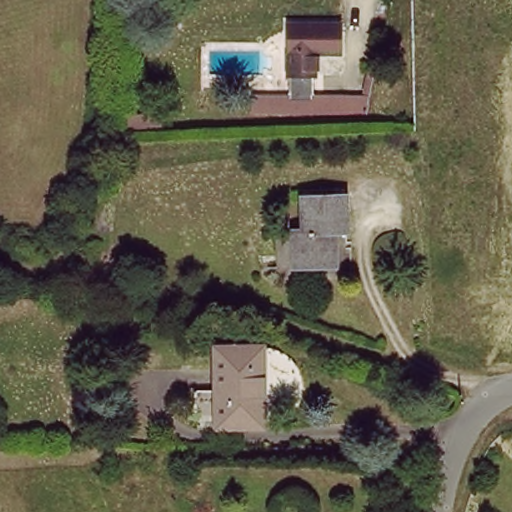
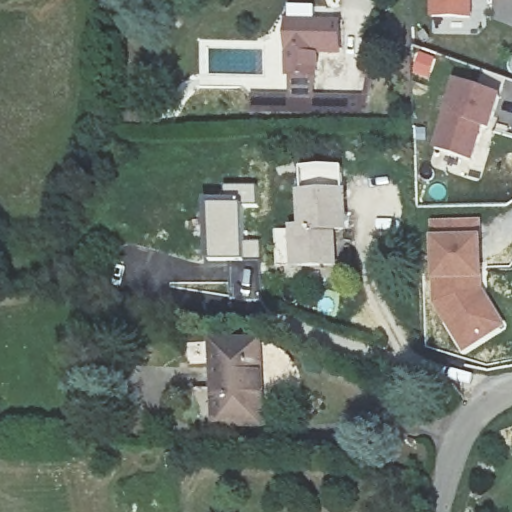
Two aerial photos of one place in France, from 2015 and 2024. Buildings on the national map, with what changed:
new [(430,19),(431,0),(471,0),(471,19),(430,19)]
unchanged [(285,26),(346,25),(345,58),(324,59),(323,79),(283,83),(285,26)]
new [(489,132),(482,129),(471,163),(433,151),(454,82),(502,98),(489,132)]
new [(208,204),(224,204),(224,189),(256,187),(257,207),(242,208),(243,240),(259,240),(260,260),(208,264),(208,204)]
unchanged [(344,194),(345,229),(330,230),(331,263),(289,264),(287,225),(297,225),(297,194),(344,194)]
new [(483,242),(481,241),(482,280),(484,279),(484,294),(506,328),(462,353),(433,305),(432,283),(432,239),(432,223),(482,222),(483,242)]
unchanged [(275,359),(257,432),(209,421),(228,346),(275,359)]

